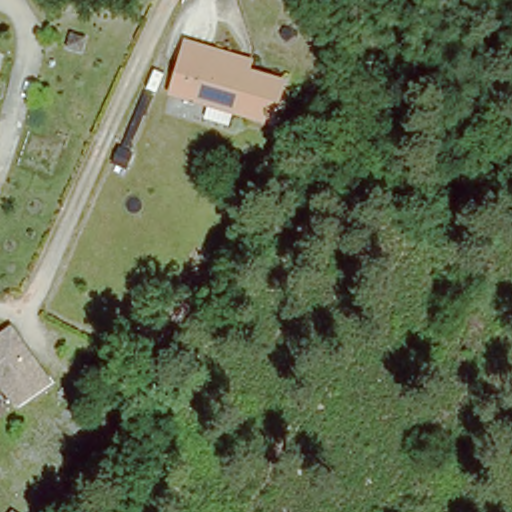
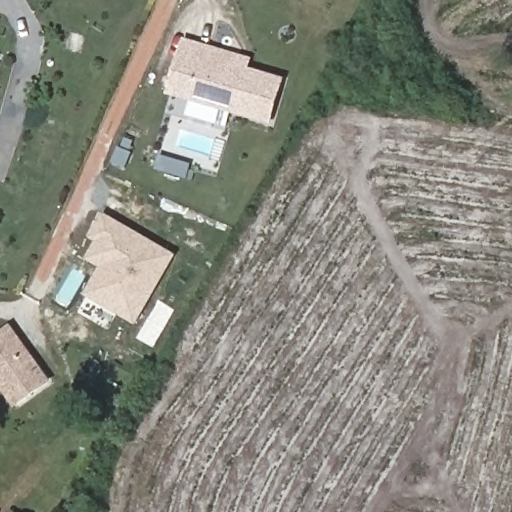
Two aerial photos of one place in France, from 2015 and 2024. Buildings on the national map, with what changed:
unchanged [(255,60),(253,69),(272,74),(260,116),(197,98),(178,92),(192,42),(202,45),(219,50),(255,60)]
new [(90,237),(105,214),(177,255),(136,326),(83,296),(99,269),(86,261),(97,242),(90,237)]
unchanged [(48,377),(17,400),(0,378),(0,332),(9,325),(48,377)]

